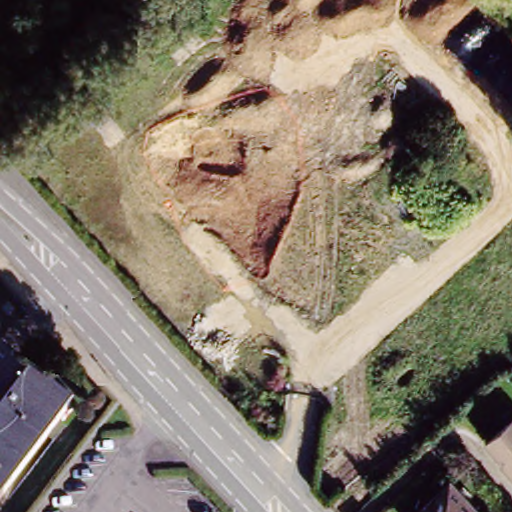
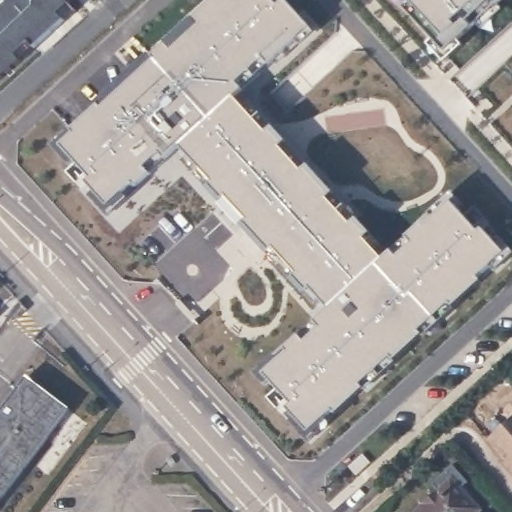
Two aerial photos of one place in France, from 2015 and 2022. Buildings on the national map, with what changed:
new [(0,77),(0,0),(80,0),(83,4),(0,77)]
new [(303,170),(308,164),(335,193),(327,199),(351,224),(357,217),(372,233),(365,238),(383,257),(392,250),(397,256),(413,242),(407,236),(421,222),(424,227),(452,202),(479,232),(482,229),(503,253),(477,277),(482,281),(454,307),(450,302),(419,330),(423,335),(395,361),(392,357),(360,385),(365,390),(337,413),(333,408),(308,431),(287,407),(292,402),(264,373),(290,351),(287,347),(300,336),(305,341),(321,327),(315,320),(330,307),(310,286),(306,290),(294,277),(298,273),(273,246),(269,250),(245,222),(249,219),(227,196),(221,201),(207,187),(214,182),(182,145),(165,160),(161,154),(145,167),(150,172),(135,186),(133,184),(109,205),(87,181),(92,177),(61,145),(76,132),(73,130),(101,105),(103,107),(155,59),(152,56),(216,0),(272,0),(277,6),(284,0),(308,27),(235,97),(267,132),(272,126),(287,142),(280,147),(303,170)]
demolished [(237,0),(283,0),(259,22),(237,0)]
new [(472,27),(445,51),(399,0),(490,0),(466,21),(472,27)]
demolished [(328,327),(295,292),(290,297),(178,177),(242,119),(255,106),(260,102),(269,112),(283,99),(303,121),(285,128),(360,209),(367,202),(377,212),(370,220),(403,255),(328,327)]
demolished [(170,247),(178,240),(196,258),(188,266),(170,247)]
unchanged [(66,409),(0,497),(0,408),(24,377),(66,409)]
unchanged [(485,446),(512,421),(512,481),(509,477),(501,468),(503,466),(485,446)]
demolished [(332,471),(365,440),(379,455),(359,472),(345,486),(332,471)]
unchanged [(448,482),(476,512),(417,512),(448,482)]

